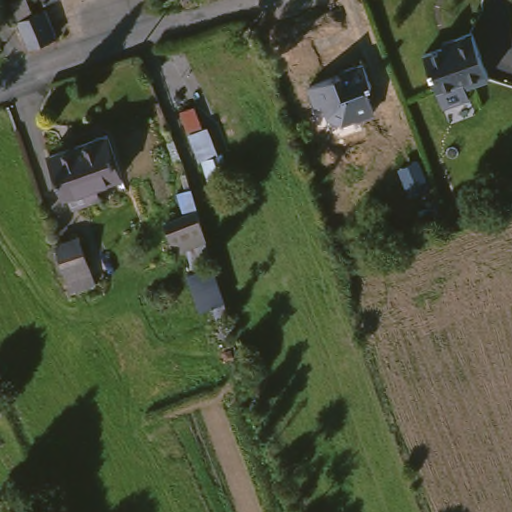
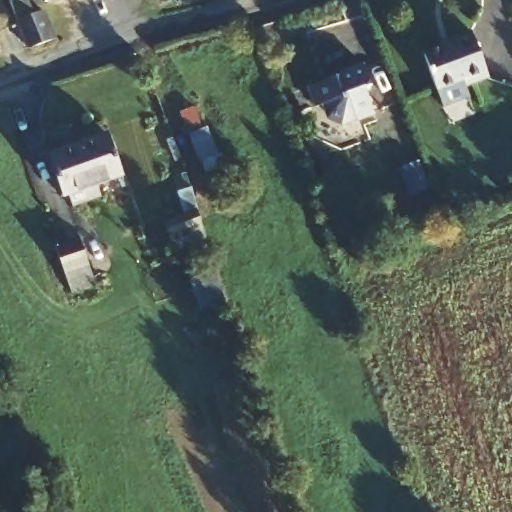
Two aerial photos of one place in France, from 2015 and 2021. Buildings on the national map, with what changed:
unchanged [(56,45),(40,49),(35,53),(22,10),(36,5),(40,18),(48,16),(56,45)]
unchanged [(456,40),(455,36),(475,29),(492,75),(470,84),(467,77),(442,88),(427,52),(456,40)]
unchanged [(338,75),(340,80),(347,78),(343,67),(365,60),(373,85),(368,87),(378,117),(357,125),(355,117),(337,123),(328,117),(323,104),(315,106),(307,85),(338,75)]
unchanged [(202,105),(220,154),(226,151),(232,170),(215,172),(210,161),(203,162),(186,110),(202,105)]
unchanged [(112,128),(129,173),(107,181),(110,191),(81,202),(76,190),(74,191),(57,147),(112,128)]
unchanged [(195,246),(190,230),(183,215),(200,210),(206,224),(210,240),(195,246)]
unchanged [(80,292),(73,275),(61,242),(84,234),(97,266),(103,284),(80,292)]
unchanged [(229,299),(199,311),(186,275),(211,265),(229,299)]

